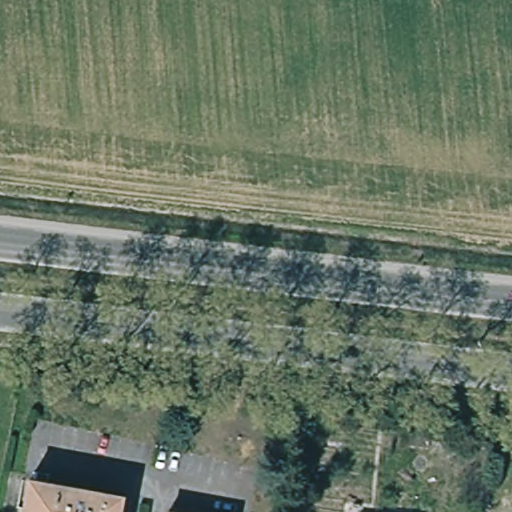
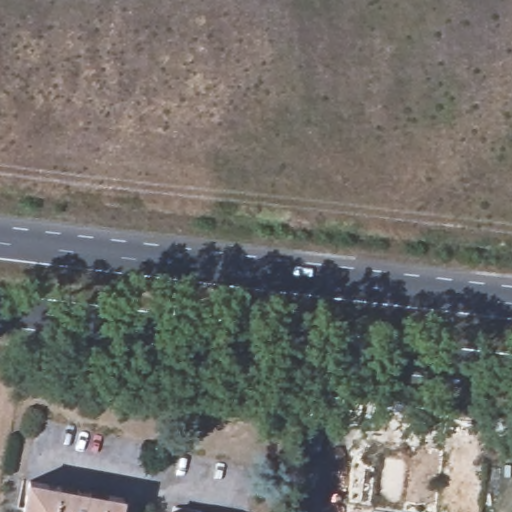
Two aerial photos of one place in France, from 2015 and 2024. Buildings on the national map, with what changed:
unchanged [(28,482),(122,500),(120,512),(23,512),(28,482)]
unchanged [(198,511),(207,512),(198,512),(198,511)]

